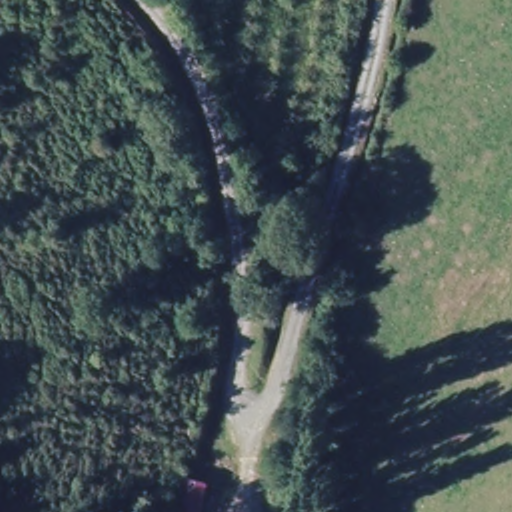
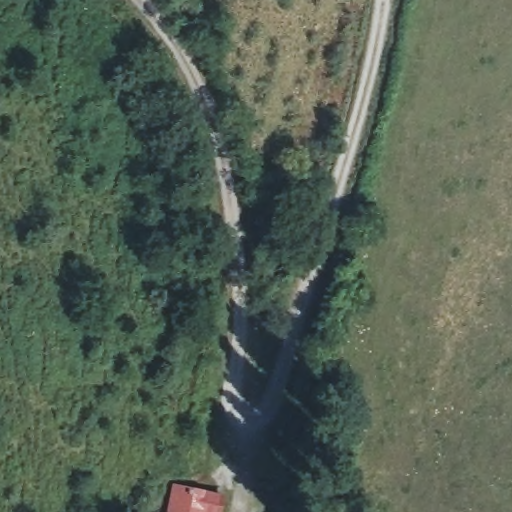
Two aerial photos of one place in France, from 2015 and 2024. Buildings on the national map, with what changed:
unchanged [(198,512),(163,512),(165,488),(200,491),(198,512)]

